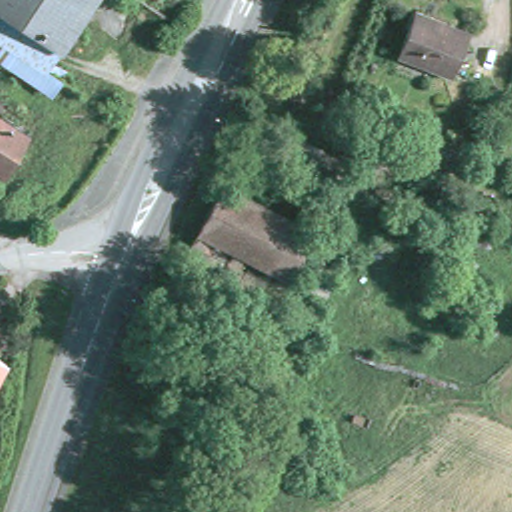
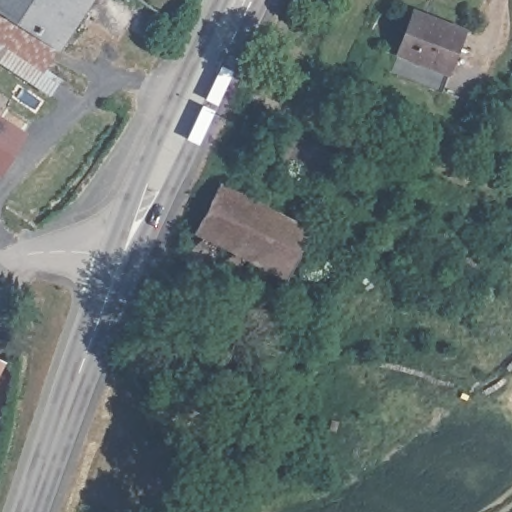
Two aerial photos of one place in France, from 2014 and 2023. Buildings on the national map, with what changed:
unchanged [(0,13),(0,0),(90,0),(56,51),(0,13)]
unchanged [(445,68),(392,46),(410,7),(463,28),(445,68)]
unchanged [(56,84),(46,96),(0,66),(0,13),(56,51),(41,75),(56,84)]
unchanged [(0,165),(0,121),(20,134),(0,165)]
unchanged [(327,187),(277,163),(290,138),(338,161),(327,187)]
unchanged [(277,296),(188,252),(218,188),(307,229),(277,296)]
unchanged [(0,362),(0,357),(2,358),(0,362)]

